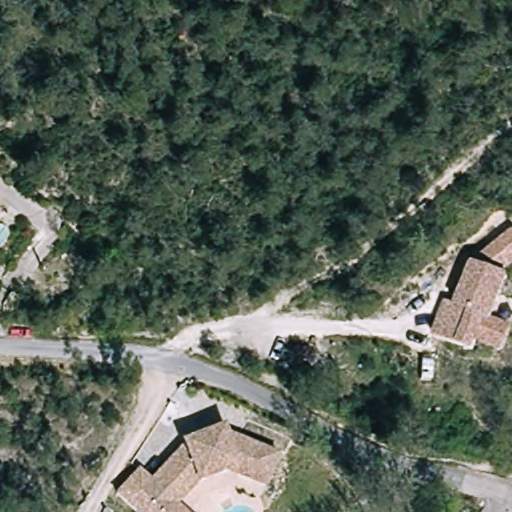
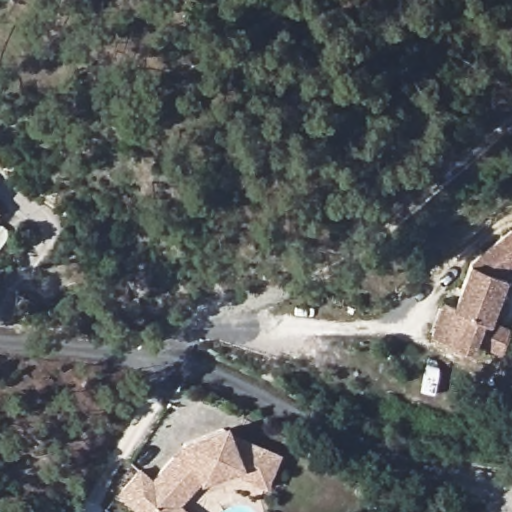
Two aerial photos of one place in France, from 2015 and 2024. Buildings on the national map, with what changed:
unchanged [(512,235),(512,267),(500,277),(508,280),(494,322),(512,329),(512,330),(505,351),(480,342),(477,353),(437,340),(448,306),(459,310),(474,266),(512,235)]
unchanged [(141,472),(153,483),(189,447),(188,442),(226,428),(230,440),(238,437),(282,456),(268,488),(231,473),(201,483),(176,507),(181,512),(136,512),(118,495),(141,472)]

